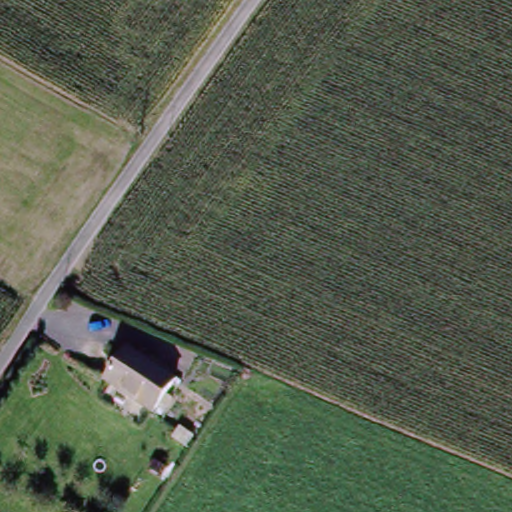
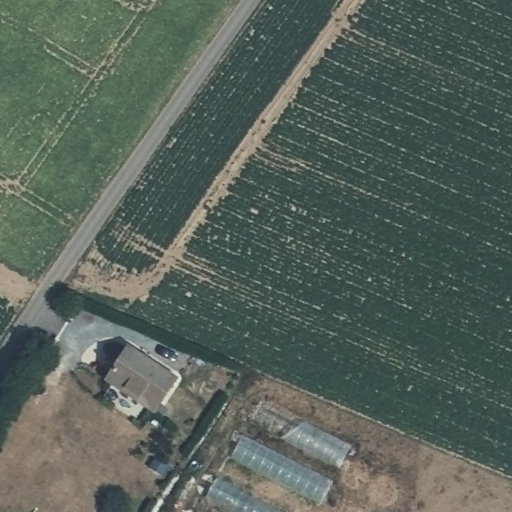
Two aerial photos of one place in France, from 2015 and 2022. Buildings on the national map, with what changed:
unchanged [(102,380),(123,351),(170,382),(150,413),(102,380)]
new [(353,445),(340,468),(254,418),(264,398),(353,445)]
new [(331,480),(319,505),(230,459),(240,436),(331,480)]
new [(214,478),(280,512),(225,512),(205,502),(214,478)]
new [(197,511),(199,512),(197,512),(197,511)]

